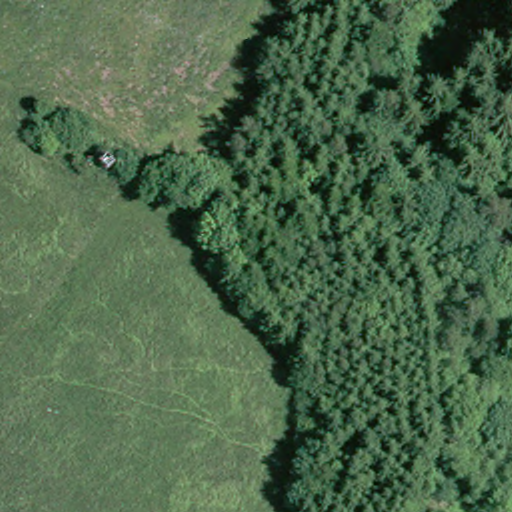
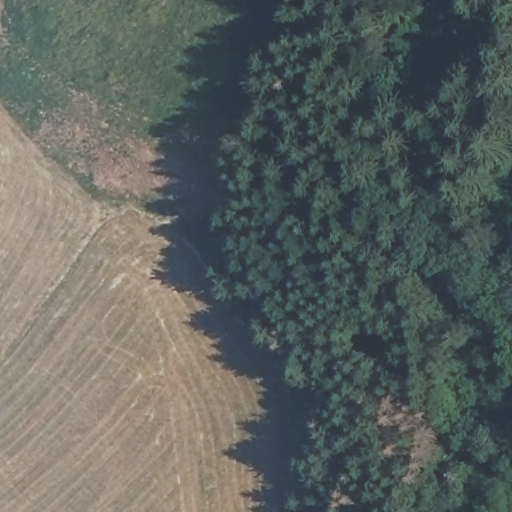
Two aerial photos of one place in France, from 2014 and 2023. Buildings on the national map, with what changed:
[]

